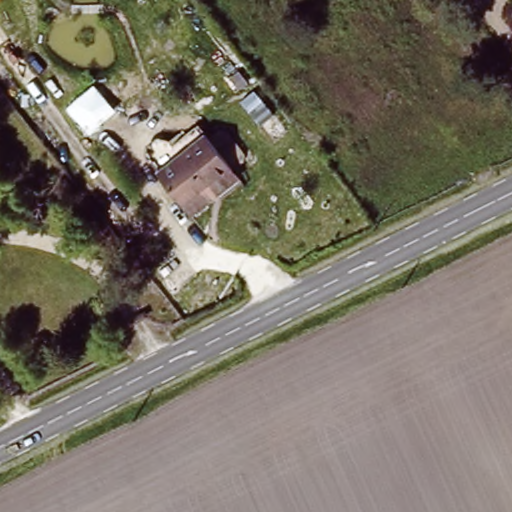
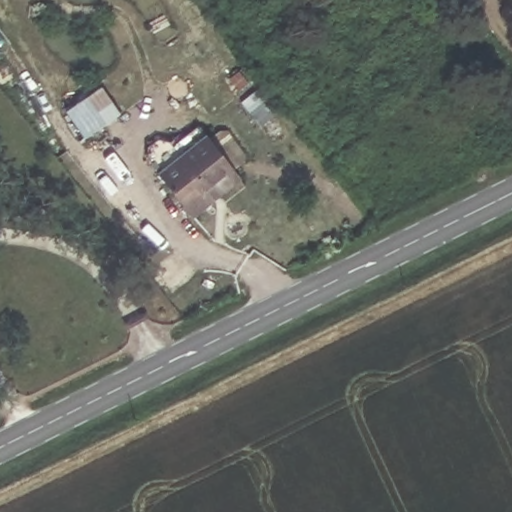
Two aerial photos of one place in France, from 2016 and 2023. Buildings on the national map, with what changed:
unchanged [(206,140),(237,179),(188,217),(159,176),(206,140)]

